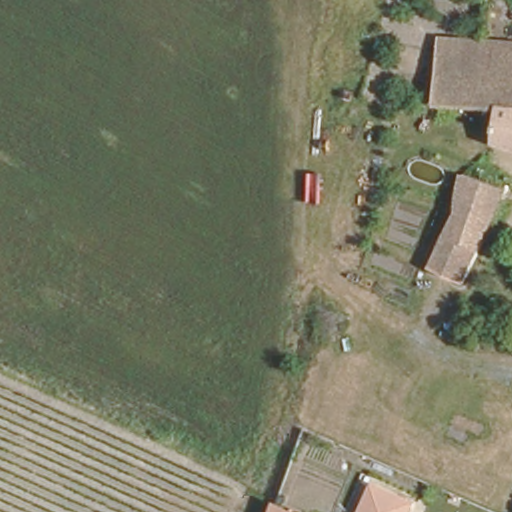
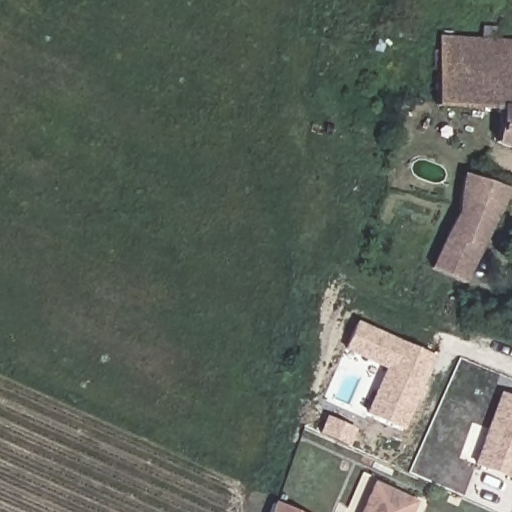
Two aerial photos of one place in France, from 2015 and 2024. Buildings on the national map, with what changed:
unchanged [(498,146),(499,109),(439,107),(441,36),(512,37),(512,150),(498,146)]
unchanged [(455,203),(459,172),(502,189),(460,281),(456,278),(431,267),(455,203)]
new [(384,369),(343,351),(356,322),(437,357),(404,432),(365,415),(384,369)]
new [(472,466),(499,392),(512,396),(512,480),(472,466)]
unchanged [(411,499),(405,512),(358,512),(373,481),(411,499)]
unchanged [(276,504),(292,512),(272,512),(276,504)]

